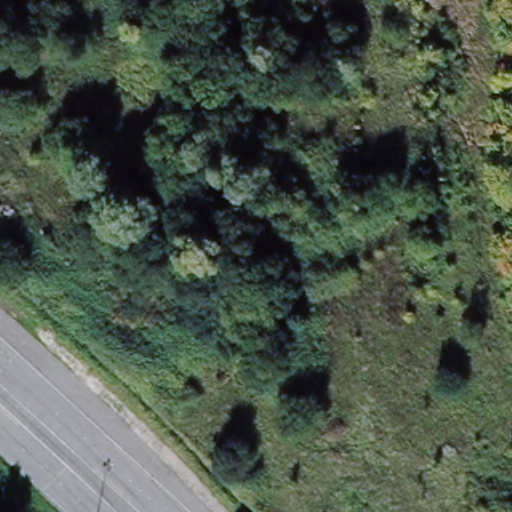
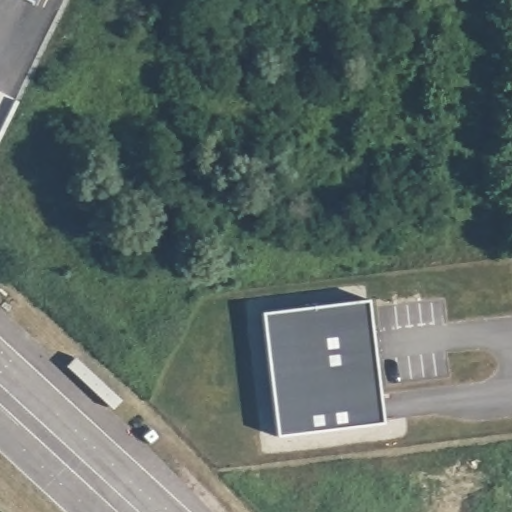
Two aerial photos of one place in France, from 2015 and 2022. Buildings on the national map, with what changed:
new [(276,434),(264,312),(368,301),(381,424),(276,434)]

